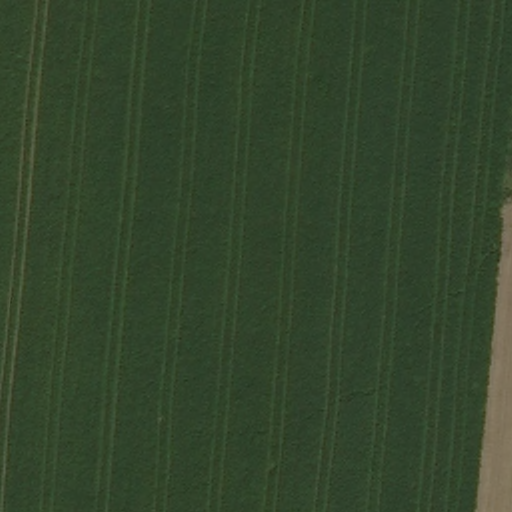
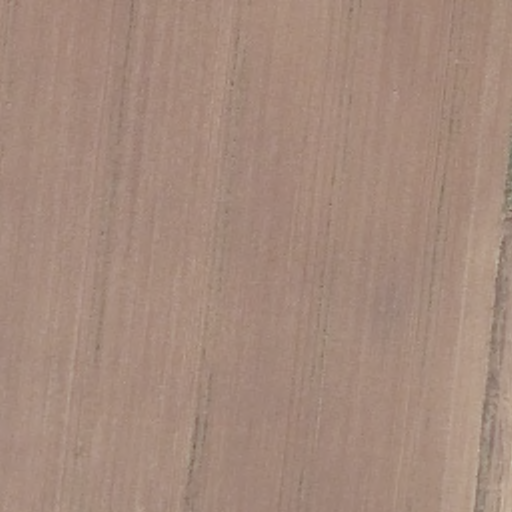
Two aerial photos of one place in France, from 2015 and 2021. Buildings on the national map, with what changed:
[]

